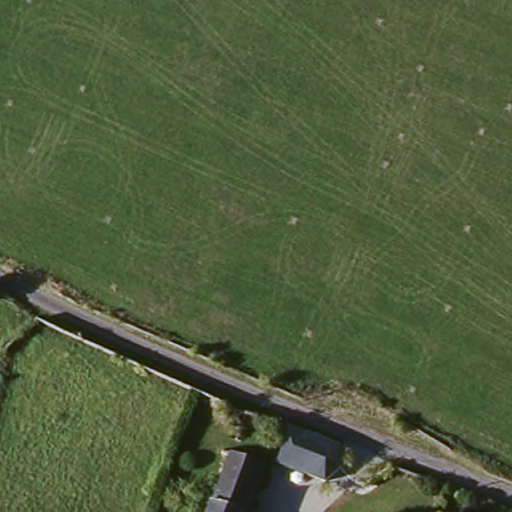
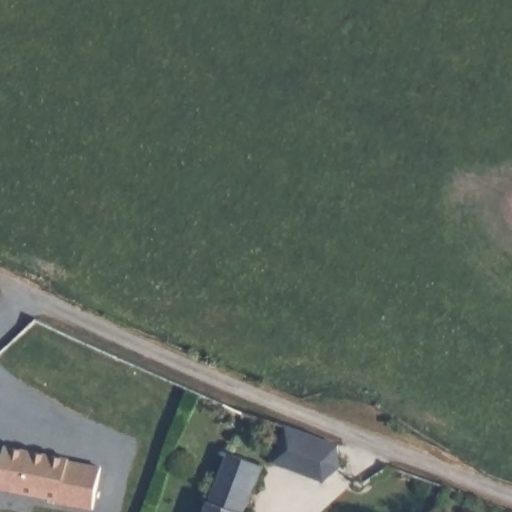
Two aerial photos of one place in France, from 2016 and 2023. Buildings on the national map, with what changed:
unchanged [(338,473),(318,484),(269,468),(280,429),(332,447),(338,473)]
new [(102,471),(95,512),(0,493),(6,450),(102,471)]
unchanged [(217,451),(250,462),(236,512),(200,512),(217,451)]

